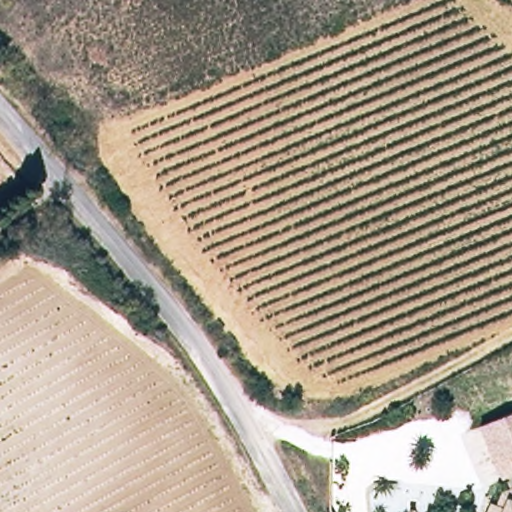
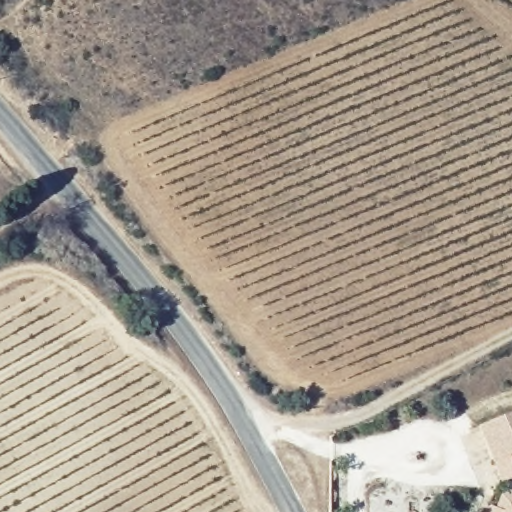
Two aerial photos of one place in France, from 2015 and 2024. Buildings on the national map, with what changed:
unchanged [(498,503),(509,500),(502,483),(498,484),(476,431),(512,417),(512,512),(494,512),(498,503)]

